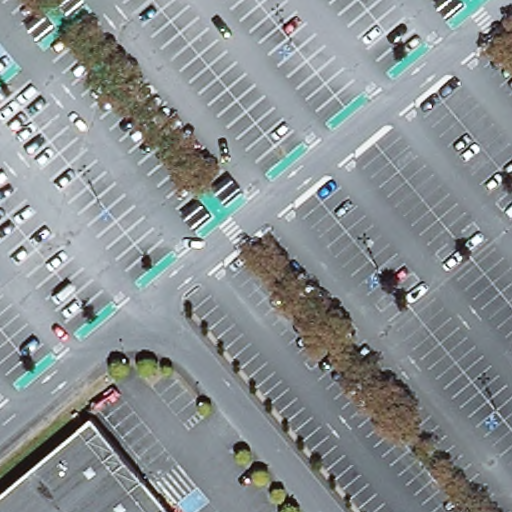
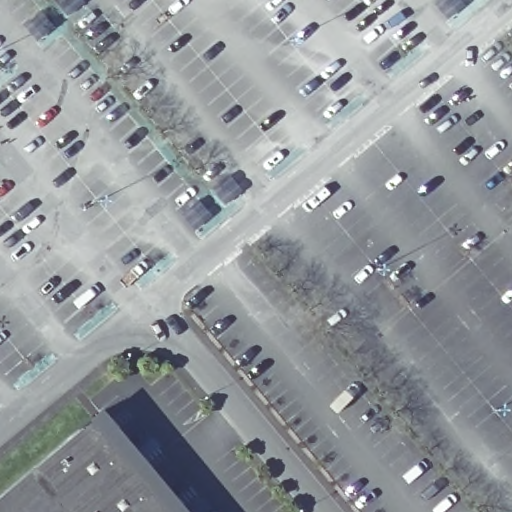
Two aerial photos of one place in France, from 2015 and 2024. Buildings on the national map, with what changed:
unchanged [(445,30),(428,11),(440,0),(446,0),(459,16),(445,30)]
unchanged [(473,6),(468,0),(480,0),(473,6)]
unchanged [(67,36),(49,14),(64,2),(81,24),(67,36)]
unchanged [(39,60),(20,39),(35,25),(53,49),(39,60)]
unchanged [(219,217),(202,199),(215,186),(233,205),(219,217)]
unchanged [(189,243),(173,224),(188,211),(205,230),(189,243)]
unchanged [(169,512),(0,512),(0,497),(92,420),(169,512)]

